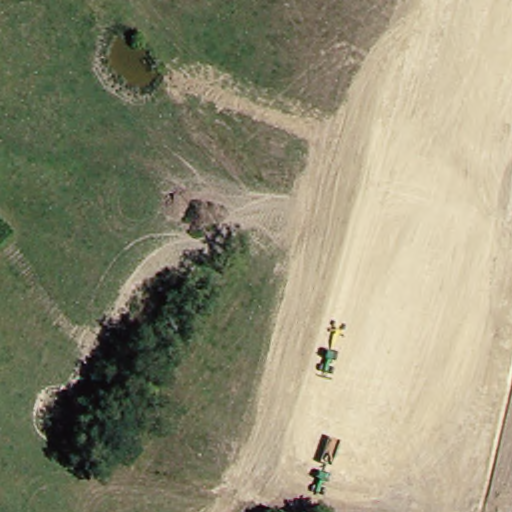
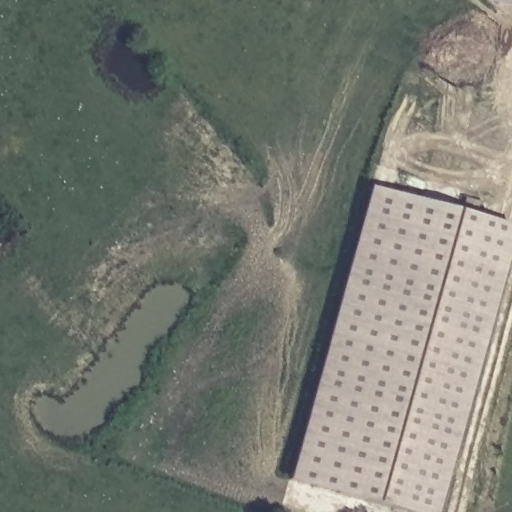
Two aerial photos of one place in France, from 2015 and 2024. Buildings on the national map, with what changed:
new [(437,512),(405,512),(288,481),(369,187),(512,227),(512,244),(437,512)]

